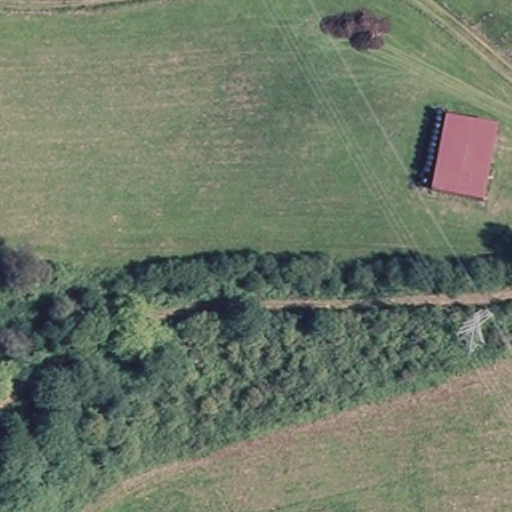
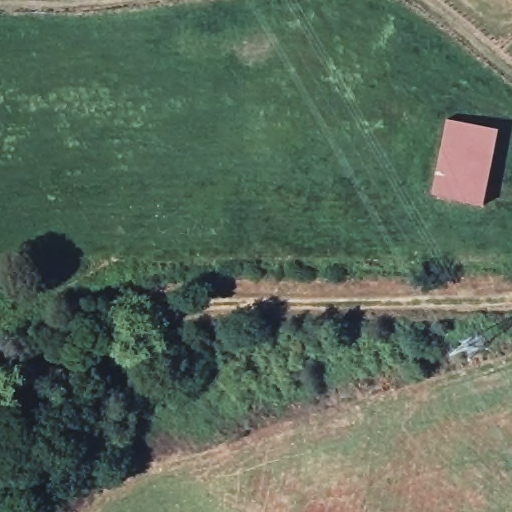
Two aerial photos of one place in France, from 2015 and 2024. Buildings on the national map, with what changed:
unchanged [(499,134),(486,204),(435,196),(449,123),(499,134)]

